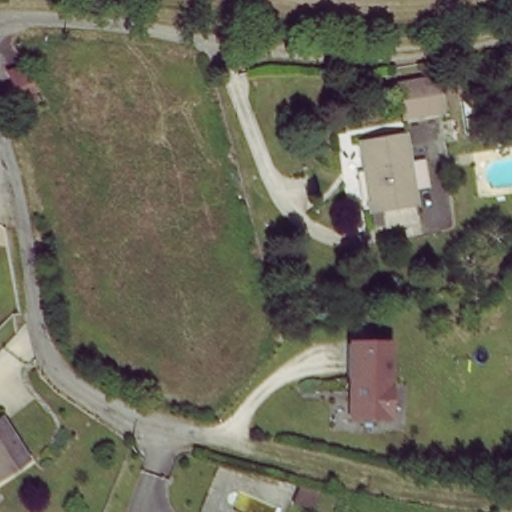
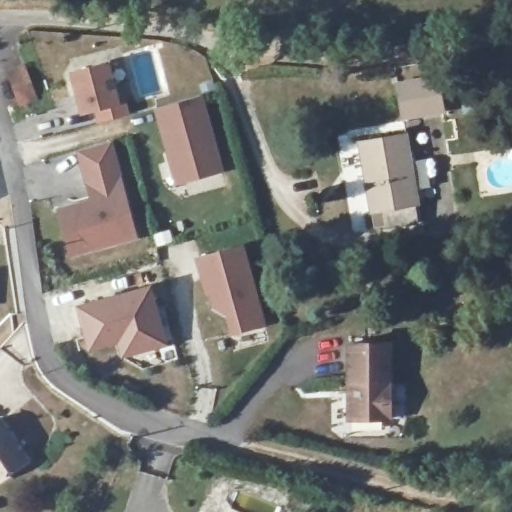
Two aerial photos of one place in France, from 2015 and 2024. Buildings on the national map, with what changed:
new [(102,62),(107,63),(117,99),(123,98),(127,113),(100,120),(96,106),(83,109),(73,71),(102,62)]
unchanged [(420,94),(385,101),(379,69),(414,63),(420,94)]
unchanged [(31,102),(23,83),(19,73),(32,68),(36,79),(43,98),(31,102)]
new [(200,94),(220,169),(176,181),(157,106),(200,94)]
unchanged [(422,210),(388,216),(385,204),(372,205),(361,139),(409,130),(422,210)]
unchanged [(69,234),(63,209),(96,200),(82,149),(113,141),(138,236),(86,250),(73,253),(69,234)]
new [(247,244),(266,326),(229,336),(227,317),(214,310),(211,297),(208,298),(197,256),(247,244)]
new [(153,285),(169,347),(124,359),(120,344),(90,352),(78,305),(153,285)]
unchanged [(387,415),(352,415),(351,340),(391,340),(392,381),(392,415),(387,415)]
unchanged [(0,477),(0,418),(7,413),(35,456),(0,477)]

